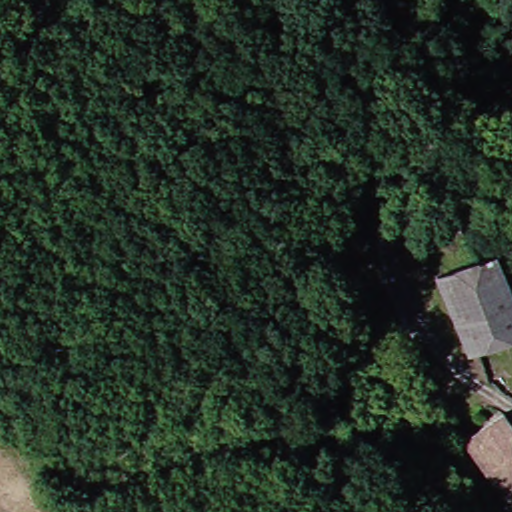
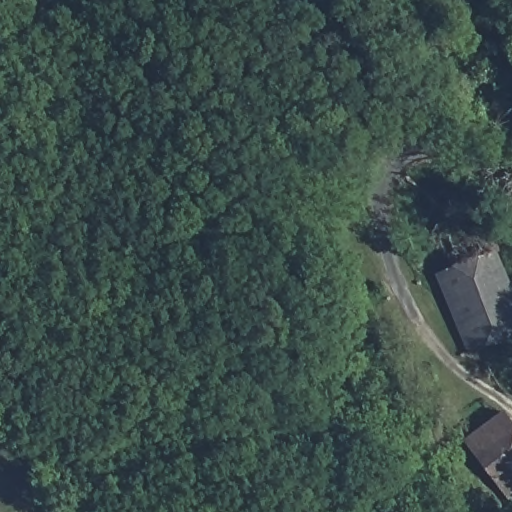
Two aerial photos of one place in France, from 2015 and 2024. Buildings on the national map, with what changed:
unchanged [(493,262),(512,311),(512,345),(465,362),(438,282),(493,262)]
unchanged [(508,501),(464,444),(503,412),(512,423),(512,506),(508,501)]

